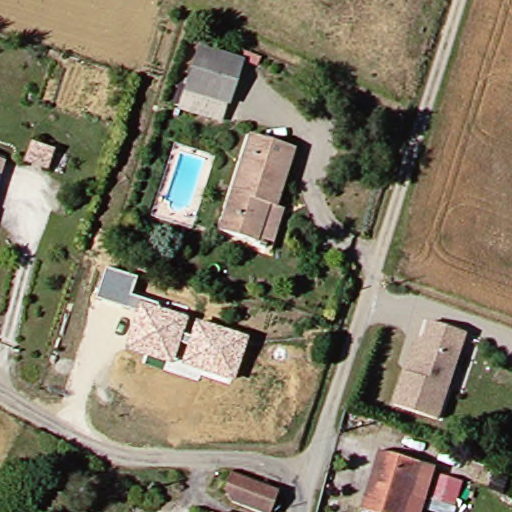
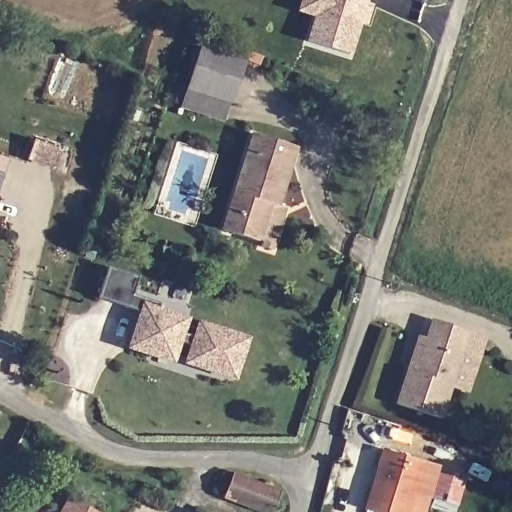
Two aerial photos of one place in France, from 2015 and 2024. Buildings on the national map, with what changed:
new [(366,4),(373,5),(366,25),(360,23),(350,54),(306,41),(313,18),(296,12),(299,0),(366,0),(366,4)]
unchanged [(190,114),(182,111),(189,91),(204,48),(245,64),(232,102),(228,102),(219,125),(190,114)]
unchanged [(272,254),(254,249),(257,241),(221,228),(255,135),(297,151),(278,207),(287,210),(272,254)]
unchanged [(65,144),(61,162),(37,158),(41,137),(65,144)]
unchanged [(11,163),(2,189),(0,197),(0,160),(11,163)]
unchanged [(248,336),(235,380),(181,363),(185,346),(179,345),(174,364),(125,348),(136,311),(97,298),(107,267),(136,276),(131,295),(158,303),(158,308),(187,317),(183,333),(189,335),(194,321),(248,336)]
unchanged [(469,333),(440,419),(397,404),(408,370),(420,336),(427,339),(433,321),(469,333)]
unchanged [(406,512),(377,512),(366,508),(371,485),(376,487),(381,470),(376,467),(383,447),(423,463),(406,512)]
unchanged [(273,512),(270,512),(229,491),(240,470),(283,489),(273,512)]
unchanged [(458,503),(432,495),(427,512),(412,512),(418,493),(429,496),(438,470),(467,478),(458,503)]
unchanged [(91,512),(97,504),(107,512),(91,512)]
unchanged [(206,512),(207,511),(209,512),(206,512)]

